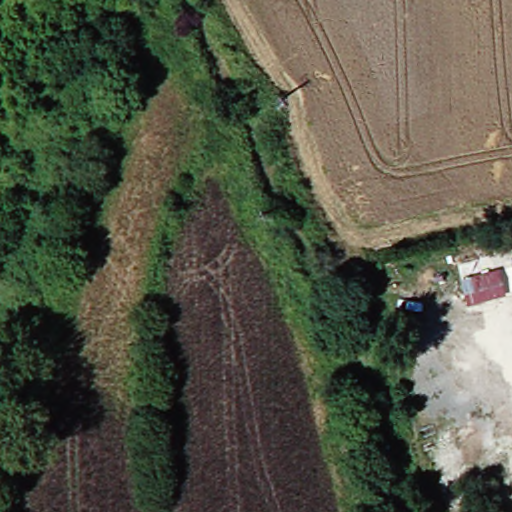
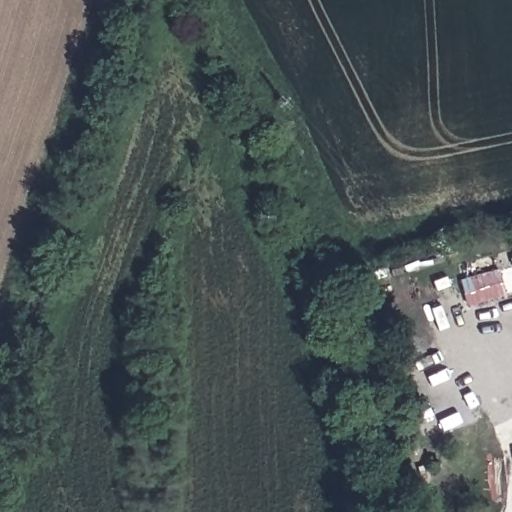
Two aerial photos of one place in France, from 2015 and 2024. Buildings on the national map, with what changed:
unchanged [(495,262),(502,286),(480,292),(472,269),(495,262)]

